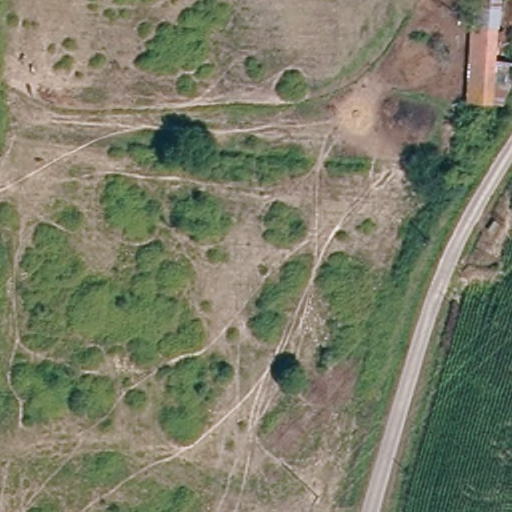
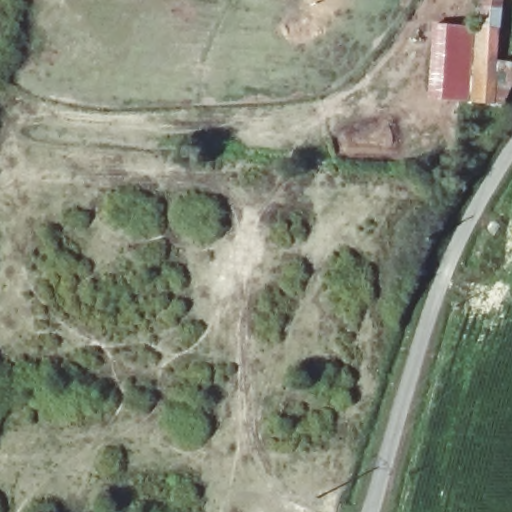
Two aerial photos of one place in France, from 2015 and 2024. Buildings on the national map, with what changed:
unchanged [(512,62),(512,83),(502,102),(501,104),(467,99),(474,0),(500,0),(496,60),(512,62)]
new [(472,28),(467,99),(466,103),(429,99),(433,24),(472,28)]

